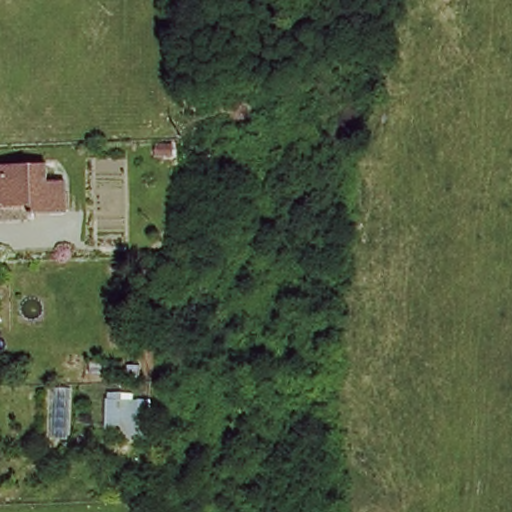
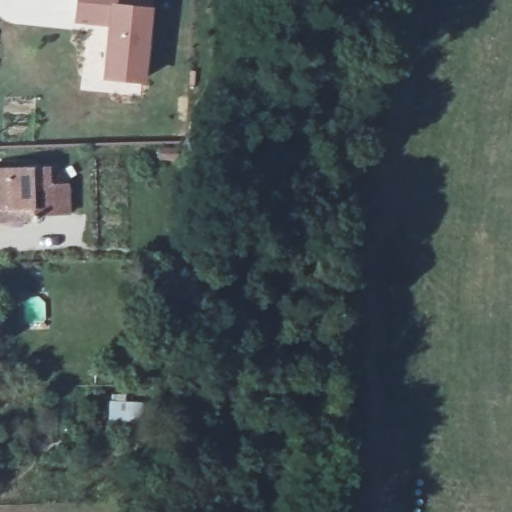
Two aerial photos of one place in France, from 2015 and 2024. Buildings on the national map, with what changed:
new [(144,81),(102,79),(107,26),(74,21),(76,0),(153,0),(152,7),(144,81)]
unchanged [(0,161),(31,163),(31,179),(68,180),(68,212),(30,210),(30,216),(0,214),(0,161)]
unchanged [(146,439),(108,427),(111,393),(148,396),(146,439)]

